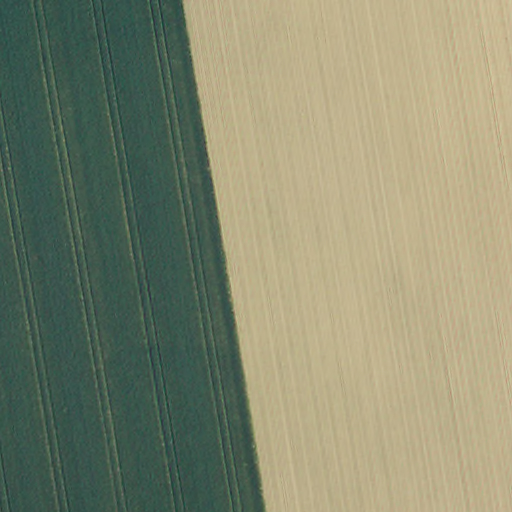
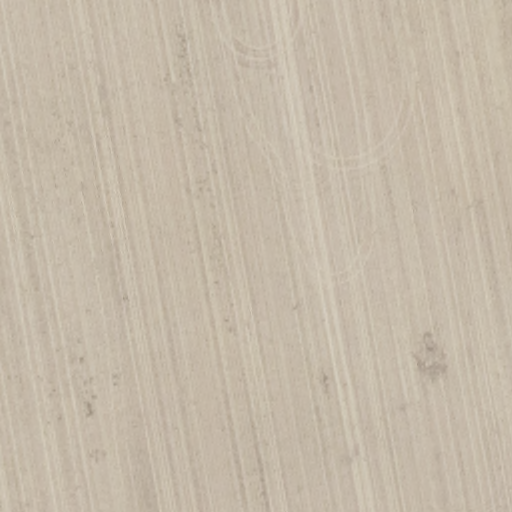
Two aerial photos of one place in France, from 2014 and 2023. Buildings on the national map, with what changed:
[]

